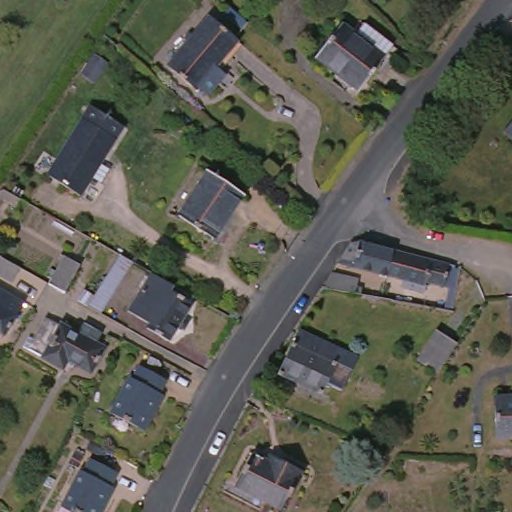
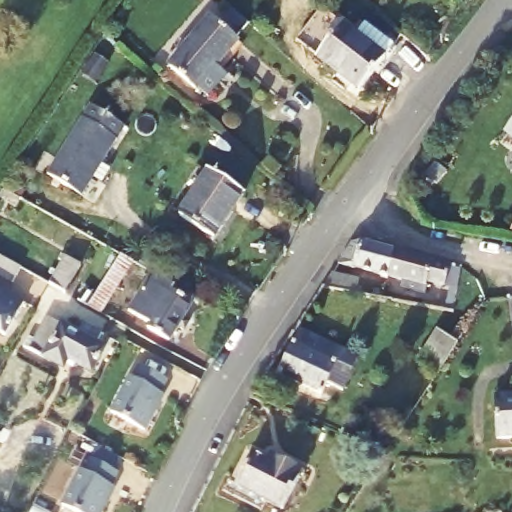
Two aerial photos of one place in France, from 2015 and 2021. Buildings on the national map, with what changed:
unchanged [(163,66),(183,43),(178,39),(184,32),(189,36),(205,17),(233,41),(212,67),(223,75),(204,96),(194,88),(192,90),(163,66)]
unchanged [(316,57),(342,24),(356,35),(364,24),(391,46),(385,53),(386,55),(358,90),(316,57)]
unchanged [(95,103),(129,124),(86,193),(51,172),(95,103)]
unchanged [(512,126),(512,143),(504,136),(512,126)]
unchanged [(179,215),(208,172),(243,195),(213,239),(179,215)]
unchanged [(388,271),(354,261),(353,264),(339,258),(352,237),(359,235),(394,245),(388,271)]
unchanged [(458,283),(446,282),(428,277),(425,288),(401,281),(402,275),(388,271),(394,245),(439,256),(451,259),(461,262),(458,283)]
unchanged [(13,277),(0,271),(0,251),(21,263),(13,277)]
unchanged [(84,290),(94,297),(121,255),(133,262),(101,313),(89,305),(78,300),(84,290)]
unchanged [(49,283),(64,256),(81,266),(66,293),(49,283)]
unchanged [(333,268),(359,273),(358,281),(363,282),(361,290),(323,282),(333,268)]
unchanged [(184,317),(191,321),(186,330),(178,327),(169,341),(147,328),(149,324),(129,312),(153,273),(175,286),(194,297),(191,302),(193,303),(184,317)]
unchanged [(0,332),(0,289),(24,303),(5,335),(0,332)]
unchanged [(61,326),(61,324),(79,334),(85,324),(101,334),(96,343),(105,348),(91,373),(68,361),(63,369),(29,349),(23,346),(29,337),(34,340),(48,319),(61,326)]
unchanged [(418,360),(438,330),(458,343),(438,374),(418,360)]
unchanged [(323,389),(318,400),(275,381),(295,336),(341,356),(353,362),(338,395),(323,389)]
unchanged [(166,378),(159,391),(161,392),(151,413),(153,414),(145,429),(111,411),(128,376),(133,377),(139,364),(166,378)]
unchanged [(512,396),(512,437),(498,438),(496,396),(512,396)]
unchanged [(235,486),(253,452),(267,460),(270,454),(302,470),(281,510),(235,486)]
unchanged [(109,486),(113,487),(101,507),(103,508),(101,512),(73,512),(62,505),(79,471),(83,471),(89,458),(116,473),(109,486)]

